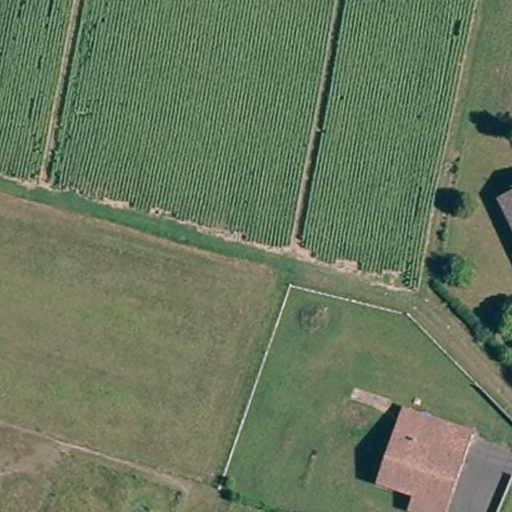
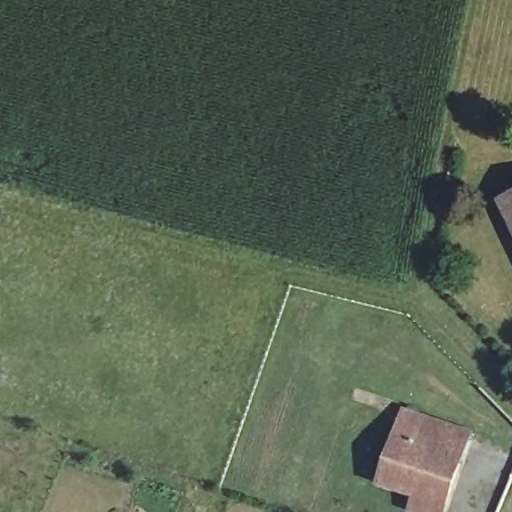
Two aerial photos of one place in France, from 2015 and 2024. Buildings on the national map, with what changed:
unchanged [(507,197),(512,195),(512,207),(507,197)]
unchanged [(419,500),(379,484),(402,411),(465,436),(442,508),(441,512),(416,512),(419,500)]

